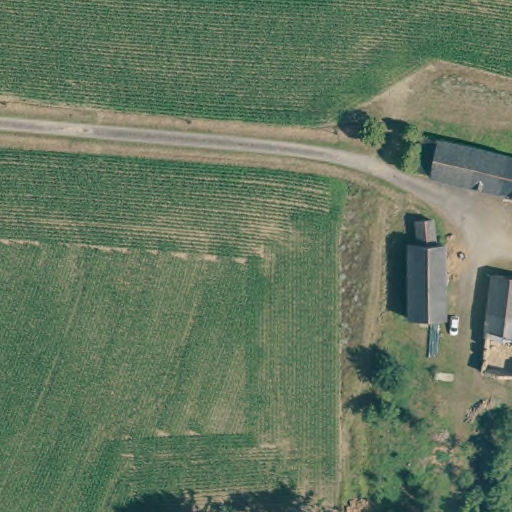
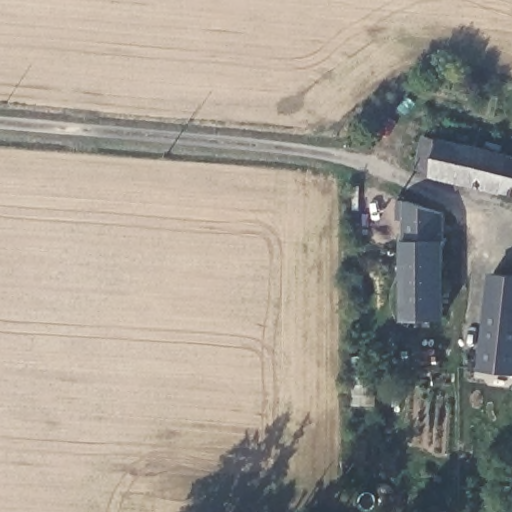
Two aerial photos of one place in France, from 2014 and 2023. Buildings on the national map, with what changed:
unchanged [(435,172),(436,167),(421,164),(427,136),(512,155),(512,190),(435,172)]
unchanged [(420,242),(420,221),(436,221),(436,242),(447,242),(446,316),(441,316),(408,315),(408,313),(410,241),(420,242)]
unchanged [(499,273),(512,275),(512,372),(497,371),(488,370),(499,273)]

